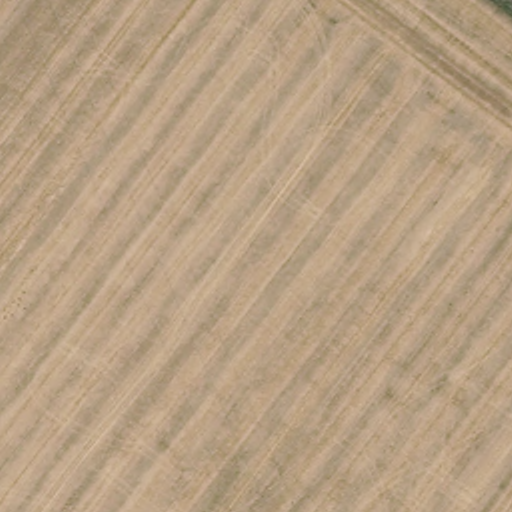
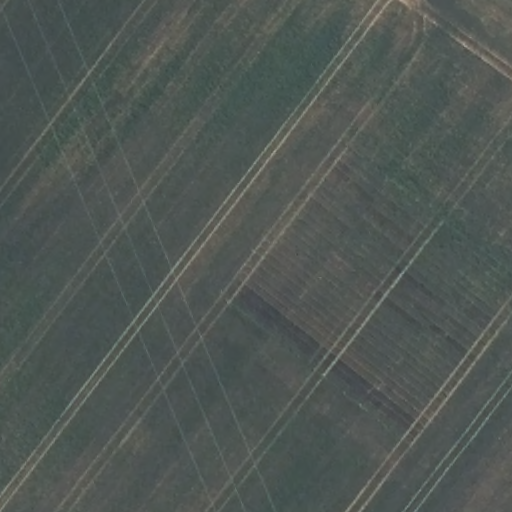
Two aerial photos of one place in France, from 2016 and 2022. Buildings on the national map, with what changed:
[]

